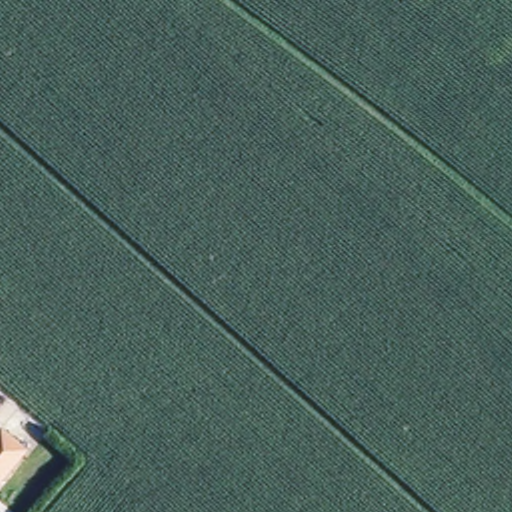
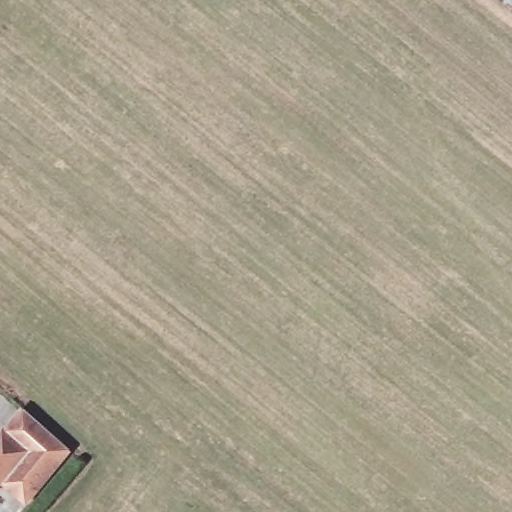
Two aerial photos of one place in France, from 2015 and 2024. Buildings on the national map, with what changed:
new [(27,452),(2,431),(20,408),(70,452),(25,506),(1,483),(27,452)]
unchanged [(27,452),(1,483),(0,485),(0,434),(2,431),(27,452)]

